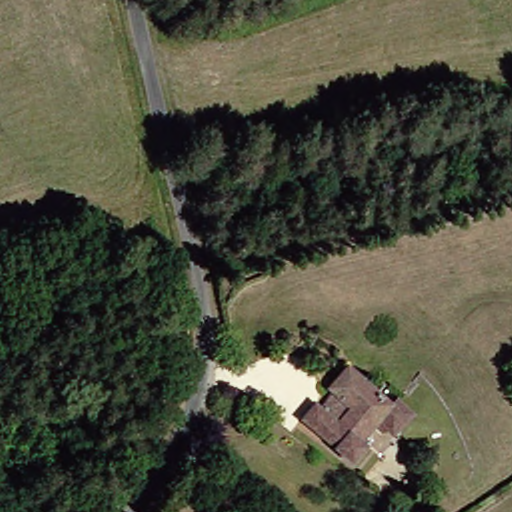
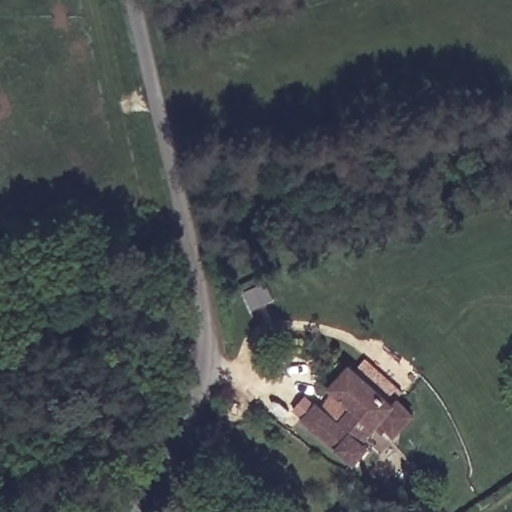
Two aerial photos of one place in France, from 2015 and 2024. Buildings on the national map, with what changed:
unchanged [(297,422),(312,405),(319,409),(327,399),(320,392),(347,368),(387,407),(398,397),(417,413),(401,431),(385,418),(362,441),(368,448),(350,468),(297,422)]

